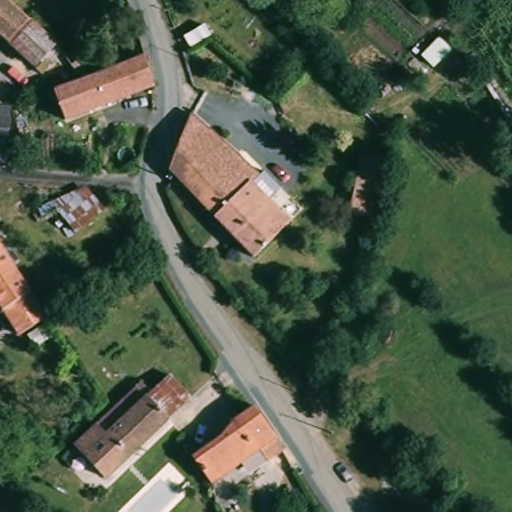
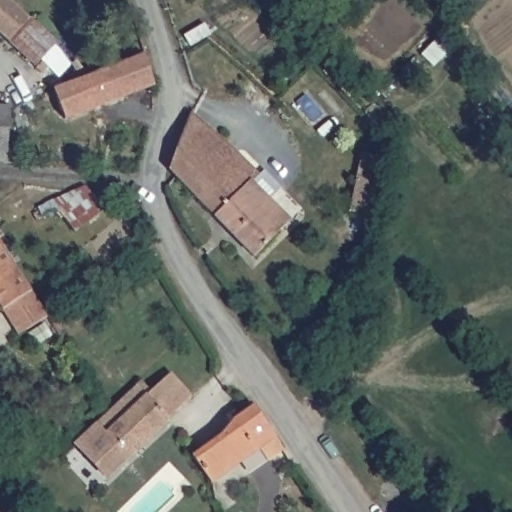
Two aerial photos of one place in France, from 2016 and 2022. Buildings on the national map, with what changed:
unchanged [(0,34),(0,0),(12,0),(57,40),(37,66),(0,34)]
unchanged [(186,29),(200,47),(191,54),(177,36),(186,29)]
unchanged [(58,92),(88,80),(124,65),(150,54),(159,82),(134,92),(68,120),(58,92)]
unchanged [(2,150),(2,166),(0,166),(0,109),(6,110),(2,150)]
unchanged [(256,180),(295,222),(261,257),(172,169),(187,135),(195,115),(221,137),(262,172),(256,180)]
unchanged [(87,186),(104,207),(75,229),(73,227),(60,210),(87,186)]
unchanged [(55,204),(40,212),(36,204),(42,199),(48,195),(55,204)]
unchanged [(32,285),(32,286),(2,306),(0,304),(0,238),(14,258),(32,285)]
unchanged [(56,320),(59,326),(61,328),(54,333),(31,348),(18,330),(2,306),(32,286),(47,308),(50,311),(53,317),(56,320)]
unchanged [(147,395),(172,371),(185,387),(192,395),(167,418),(147,395)]
unchanged [(79,437),(139,383),(147,395),(167,418),(109,472),(79,437)]
unchanged [(257,445),(209,478),(192,456),(229,424),(252,402),(273,433),(283,450),(268,460),(257,445)]

